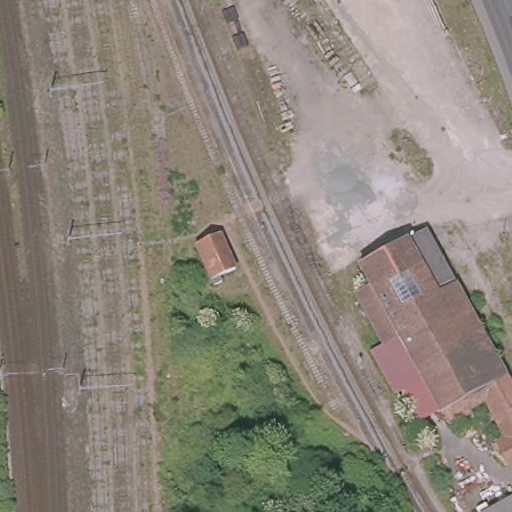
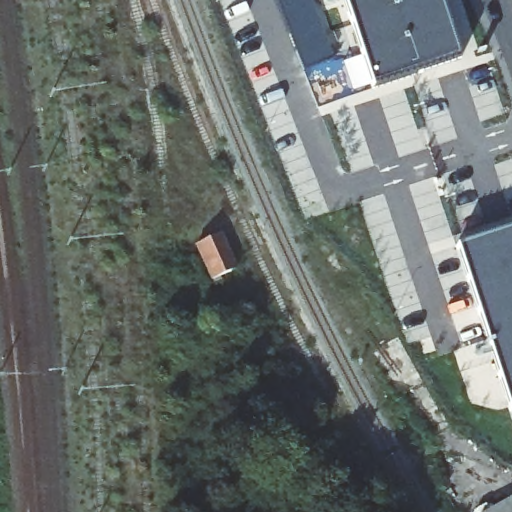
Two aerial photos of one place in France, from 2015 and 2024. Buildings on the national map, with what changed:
new [(345,0),(438,0),(457,57),(373,84),(372,80),(350,87),(342,63),(364,56),(345,0)]
demolished [(448,422),(440,407),(420,366),(402,330),(385,340),(356,289),(370,282),(359,261),(425,225),(512,384),(512,461),(510,462),(493,440),(505,433),(485,397),(469,405),(471,409),(448,422)]
unchanged [(223,228),(240,271),(208,283),(194,244),(223,228)]
new [(457,249),(512,230),(512,406),(457,249)]
unchanged [(485,512),(512,496),(512,512),(485,512)]

